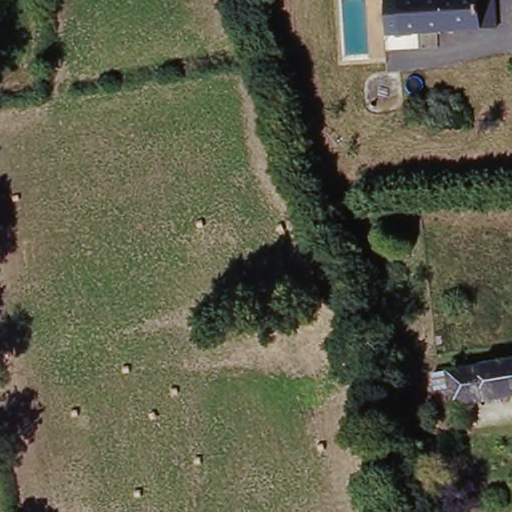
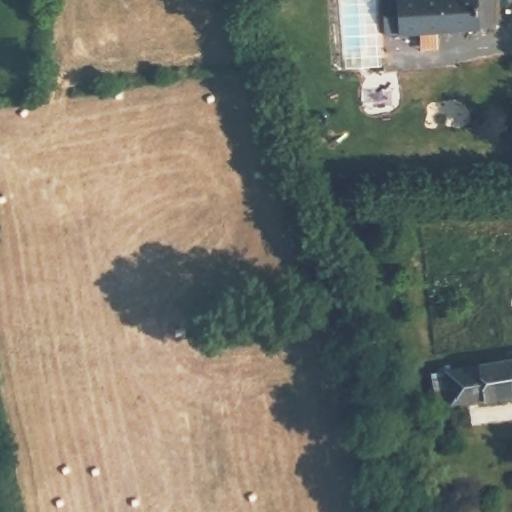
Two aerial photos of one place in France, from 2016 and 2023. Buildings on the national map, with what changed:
unchanged [(388,34),(387,0),(476,0),(477,28),(388,34)]
unchanged [(512,405),(453,414),(447,372),(512,363),(512,405)]

